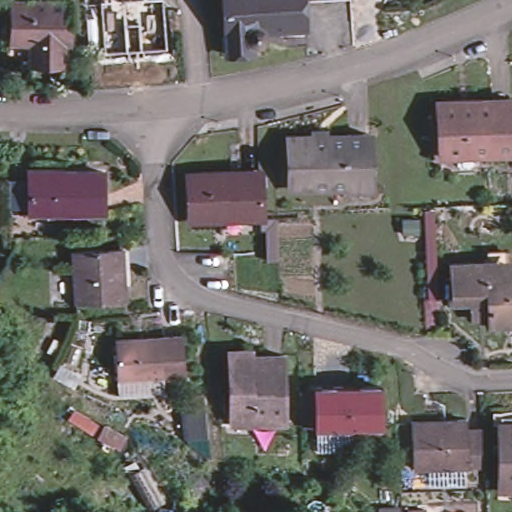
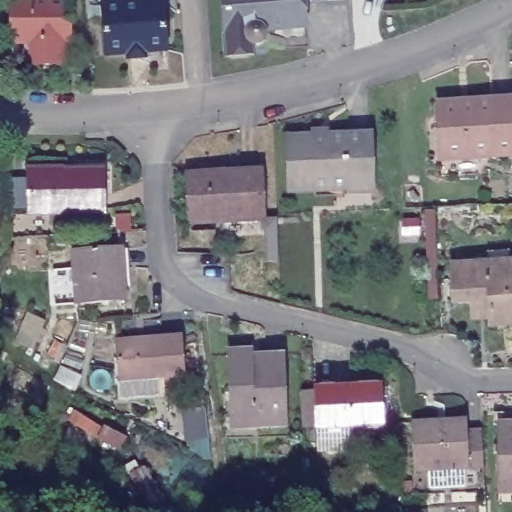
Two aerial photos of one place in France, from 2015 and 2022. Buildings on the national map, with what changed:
new [(170,52),(147,54),(147,59),(125,60),(125,57),(104,58),(100,0),(165,0),(170,52)]
unchanged [(304,25),(265,28),(263,30),(264,31),(265,33),(265,36),(265,39),(265,41),(263,43),(260,45),(258,46),(255,46),(252,46),(250,45),(250,53),(225,55),(221,0),(302,0),(304,25)]
unchanged [(66,25),(61,26),(61,62),(33,62),(33,46),(11,46),(11,3),(66,3),(66,25)]
unchanged [(437,98),(473,95),(474,99),(510,97),(512,127),(512,151),(440,155),(437,98)]
unchanged [(348,185),(290,187),(287,136),(367,133),(369,169),(370,185),(348,185)]
unchanged [(28,168),(62,168),(62,171),(100,171),(100,211),(28,211),(28,173),(28,168)]
unchanged [(263,231),(221,233),(220,218),(190,219),(187,171),(230,169),(231,175),(260,173),(263,231)]
unchanged [(75,302),(70,250),(119,247),(123,300),(75,302)]
unchanged [(491,305),(475,306),(473,295),(457,296),(455,261),(492,259),(492,270),(512,268),(512,320),(492,321),(491,305)]
unchanged [(117,340),(182,334),(185,377),(120,382),(117,340)]
unchanged [(252,422),(252,416),(231,417),(228,351),(250,350),(251,357),(262,357),(263,354),(282,353),(286,421),(252,422)]
unchanged [(320,450),(317,427),(315,387),(378,383),(382,422),(352,424),(352,448),(320,450)]
unchanged [(500,424),(499,419),(512,419),(512,492),(511,492),(510,483),(498,482),(497,424),(500,424)]
unchanged [(482,469),(467,469),(413,471),(410,424),(465,422),(466,435),(482,434),(482,469)]

